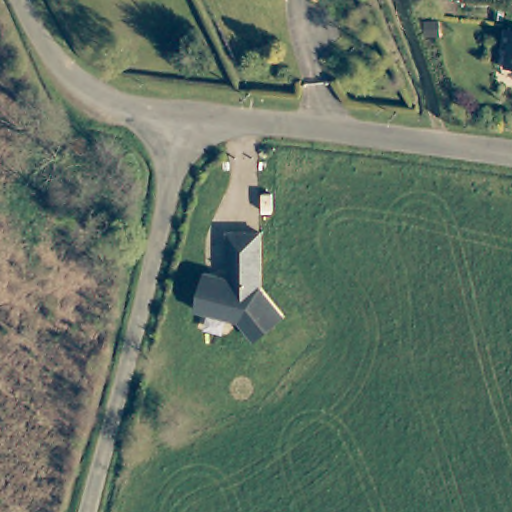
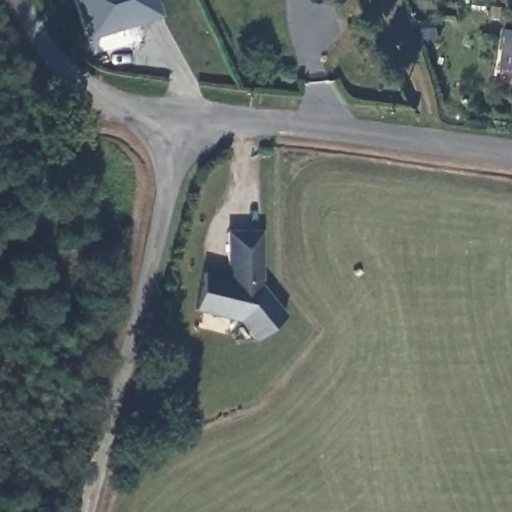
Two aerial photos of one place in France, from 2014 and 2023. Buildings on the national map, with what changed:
new [(71,0),(155,0),(161,16),(84,39),(71,0)]
unchanged [(506,72),(507,53),(501,53),(503,32),(512,32),(512,73),(506,72)]
unchanged [(252,341),(228,316),(190,311),(199,273),(224,278),(225,265),(222,265),(223,232),(254,234),(255,291),(278,317),(252,341)]

